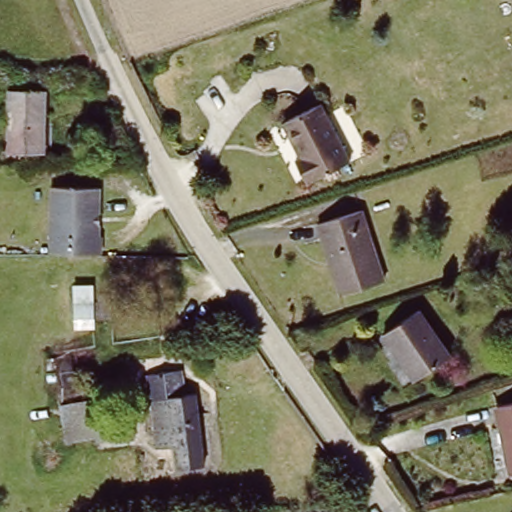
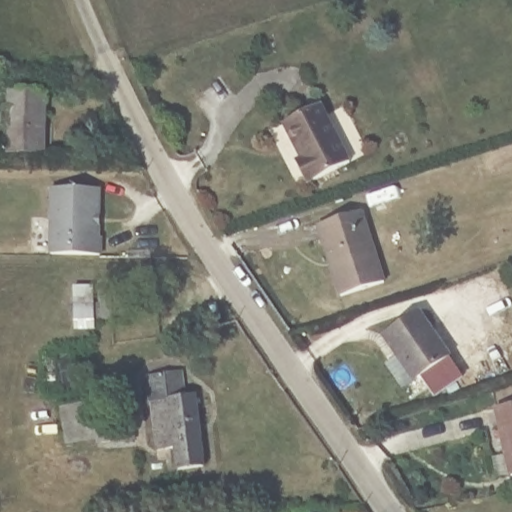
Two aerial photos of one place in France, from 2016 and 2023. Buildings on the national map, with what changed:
unchanged [(46,140),(6,140),(5,89),(46,88),(46,140)]
unchanged [(349,167),(303,185),(294,162),(303,159),(299,149),(296,150),(282,116),(323,100),(349,167)]
unchanged [(99,256),(50,256),(50,244),(50,187),(95,188),(96,244),(99,244),(99,256)]
unchanged [(387,280),(339,296),(329,266),(336,263),(328,236),(320,238),(316,226),(364,211),(387,280)]
unchanged [(396,355),(379,332),(416,307),(452,352),(420,377),(415,381),(396,355)]
unchanged [(205,469),(176,471),(174,451),(154,452),(151,373),(143,374),(143,357),(169,356),(171,395),(201,394),(205,469)]
unchanged [(494,405),(512,401),(512,472),(508,472),(494,405)]

